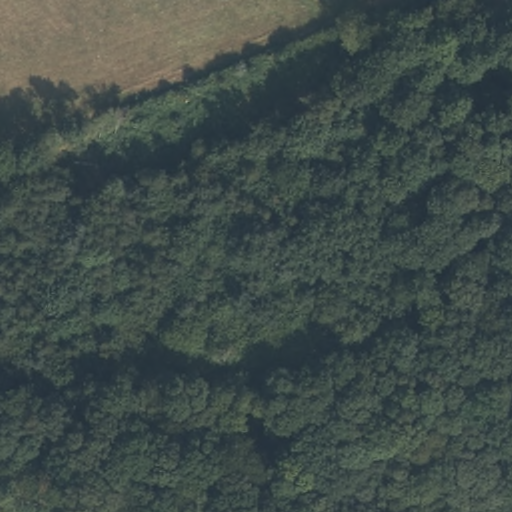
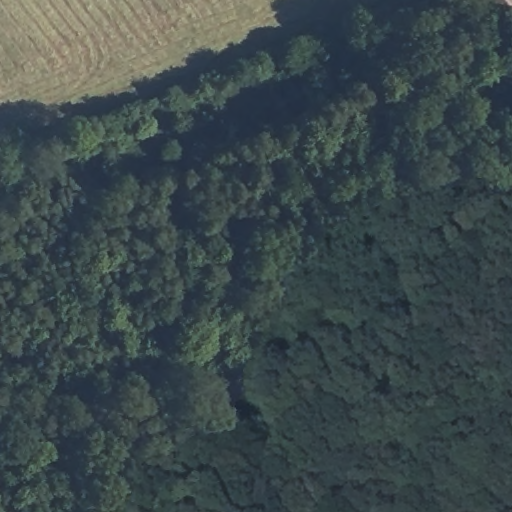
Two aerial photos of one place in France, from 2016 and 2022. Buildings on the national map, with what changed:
[]

